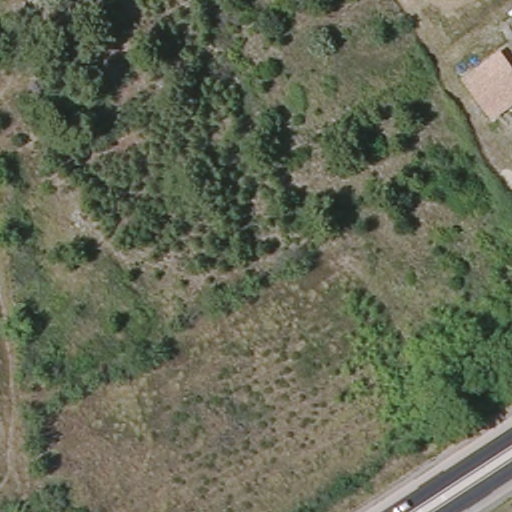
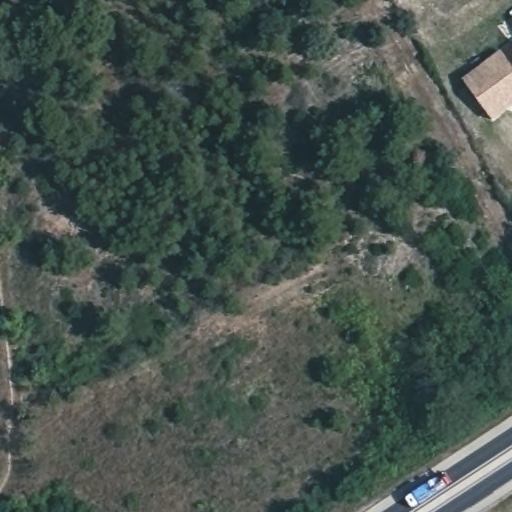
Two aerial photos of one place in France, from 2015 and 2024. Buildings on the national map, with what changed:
unchanged [(501,52),(512,66),(512,101),(492,115),(465,77),(501,52)]

